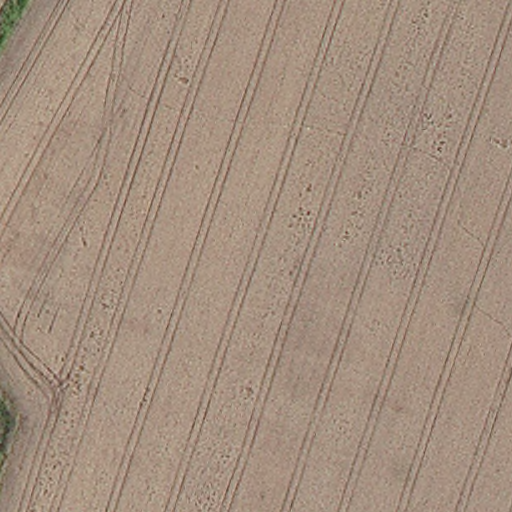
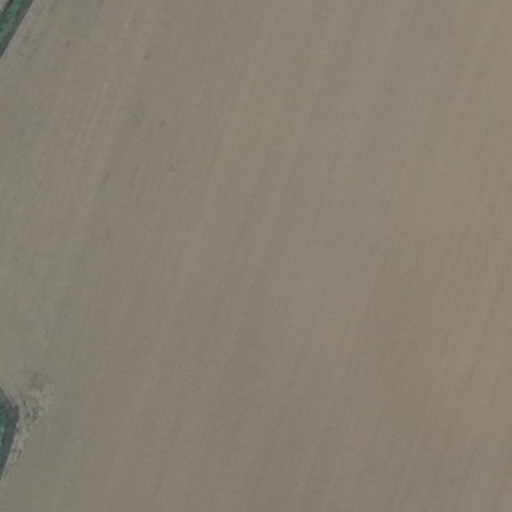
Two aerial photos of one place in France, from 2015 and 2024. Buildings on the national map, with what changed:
[]

